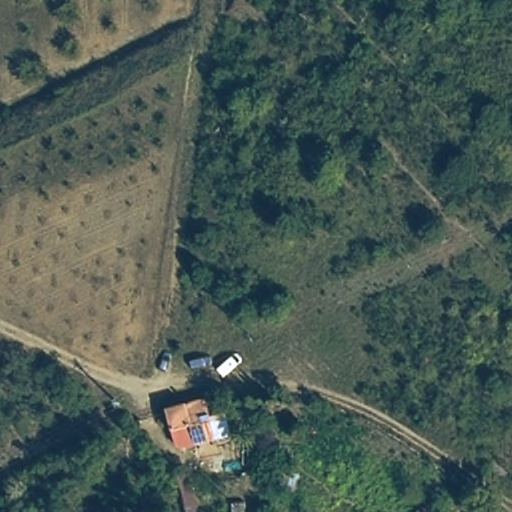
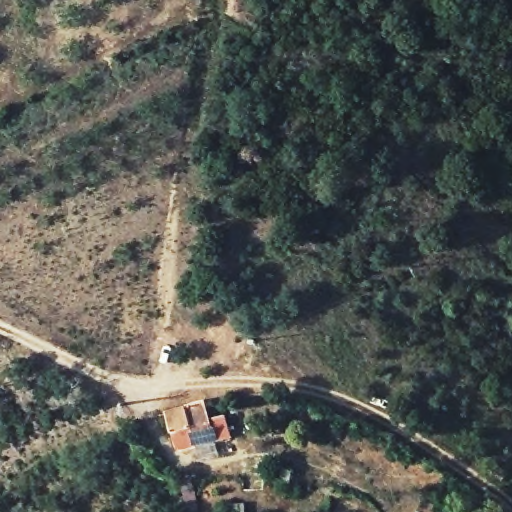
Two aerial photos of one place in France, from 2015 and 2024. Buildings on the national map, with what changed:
unchanged [(208,403),(216,443),(171,450),(165,411),(208,403)]

